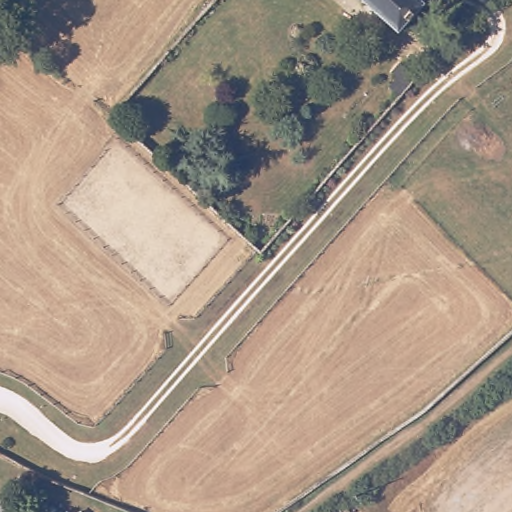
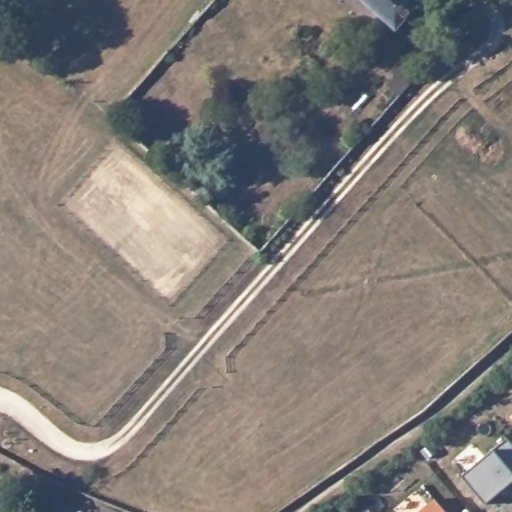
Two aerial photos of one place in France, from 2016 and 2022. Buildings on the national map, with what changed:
unchanged [(398,27),(365,0),(423,0),(398,27)]
new [(508,438),(512,443),(512,484),(487,505),(463,476),(508,438)]
new [(447,512),(420,512),(436,498),(447,512)]
new [(470,512),(464,512),(468,510),(470,512)]

